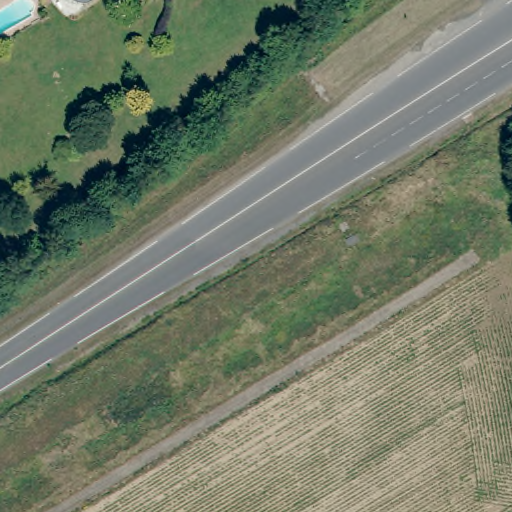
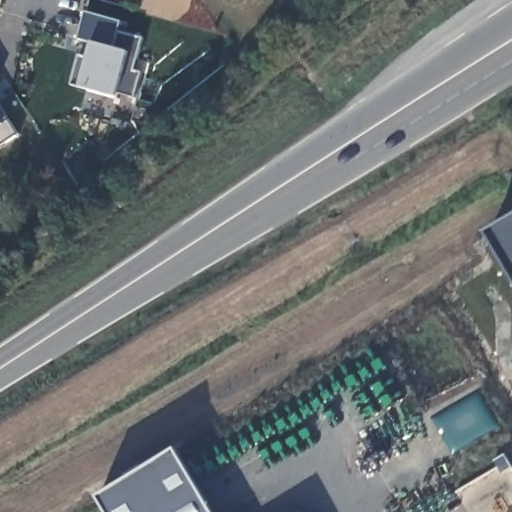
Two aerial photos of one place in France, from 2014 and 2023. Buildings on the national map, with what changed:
demolished [(92,2),(85,4),(78,3),(71,0),(94,0),(92,2)]
new [(81,56),(89,59),(94,42),(79,38),(87,13),(122,22),(120,32),(143,38),(134,70),(140,71),(133,96),(119,92),(118,97),(81,86),(74,84),(81,56)]
new [(1,75),(0,75),(0,74),(1,75)]
new [(0,143),(0,106),(19,135),(2,145),(0,143)]
new [(215,512),(108,512),(99,497),(178,448),(215,512)]

